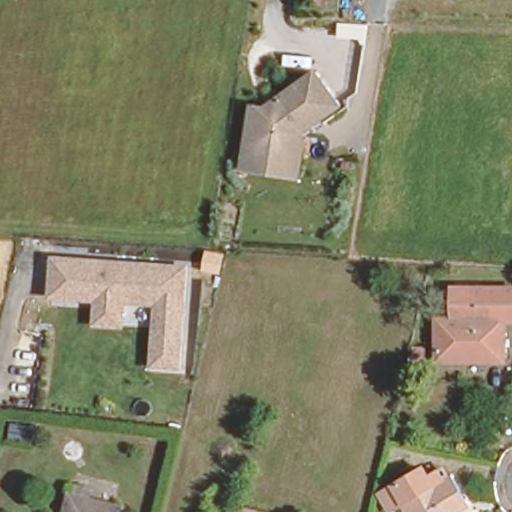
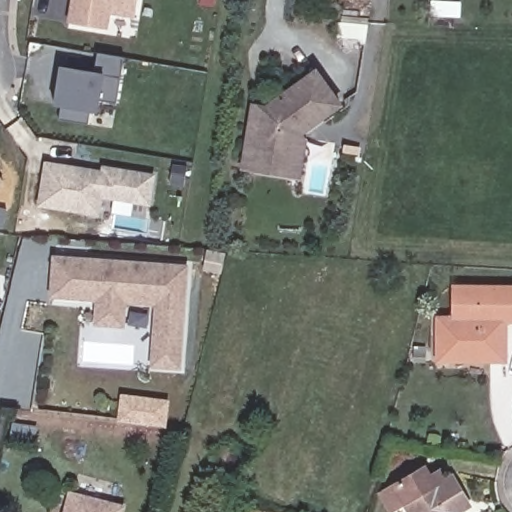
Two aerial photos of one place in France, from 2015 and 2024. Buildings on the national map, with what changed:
new [(134,16),(108,12),(105,29),(69,23),(73,0),(137,0),(134,16)]
new [(96,74),(100,54),(126,59),(116,104),(100,101),(98,113),(55,105),(61,68),(96,74)]
unchanged [(343,102),(309,128),(300,179),(237,168),(250,99),(264,102),(315,64),(343,102)]
new [(104,199),(101,217),(36,207),(44,161),(101,170),(103,166),(156,175),(150,206),(104,199)]
new [(0,179),(3,183),(0,185),(0,179)]
unchanged [(189,263),(183,369),(150,367),(151,304),(130,302),(128,330),(93,327),(93,304),(50,300),(54,251),(189,263)]
unchanged [(505,314),(505,355),(442,353),(441,313),(459,313),(460,281),(485,282),(512,282),(512,314),(505,314)]
unchanged [(456,474),(470,501),(454,509),(456,512),(412,512),(405,499),(391,506),(379,486),(393,478),(418,465),(428,460),(434,470),(443,465),(450,477),(456,474)]
unchanged [(118,505),(115,512),(60,512),(64,497),(118,505)]
unchanged [(236,512),(238,505),(262,512),(236,512)]

